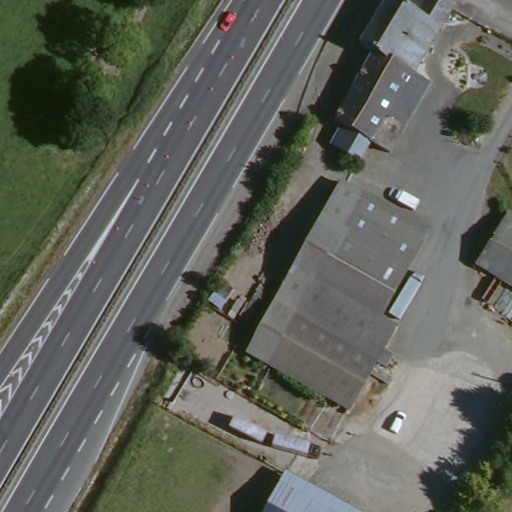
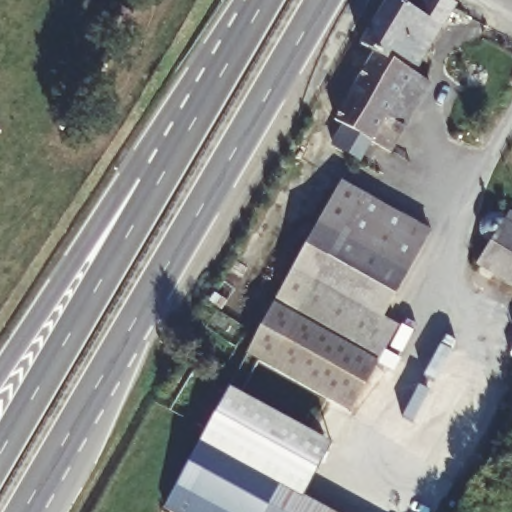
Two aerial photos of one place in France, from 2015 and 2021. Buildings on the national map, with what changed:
unchanged [(383,154),(332,123),(373,60),(360,52),(389,6),(418,0),(421,0),(452,17),(408,81),(425,92),(400,128),(383,154)]
unchanged [(383,321),(397,331),(346,417),(247,356),(342,185),(429,234),(383,321)]
unchanged [(475,268),(502,223),(512,229),(512,292),(475,268)]
new [(302,497),(331,512),(175,512),(164,506),(230,388),(332,444),(302,497)]
demolished [(265,512),(285,475),(354,512),(265,512)]

